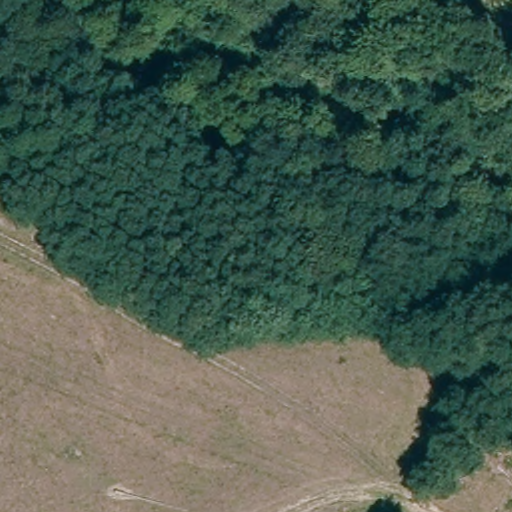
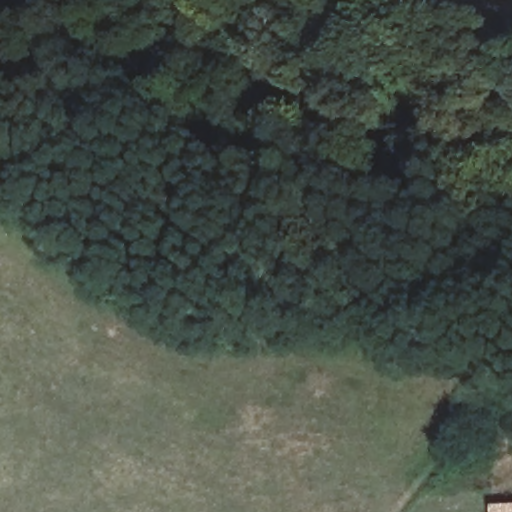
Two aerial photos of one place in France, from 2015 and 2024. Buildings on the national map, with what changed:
new [(491,505),(512,504),(512,512),(491,512),(491,505)]

